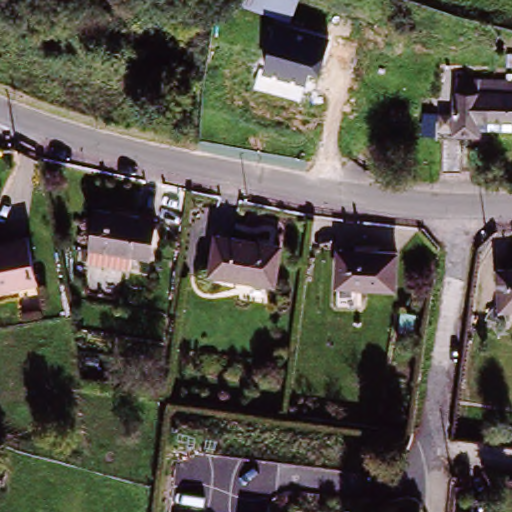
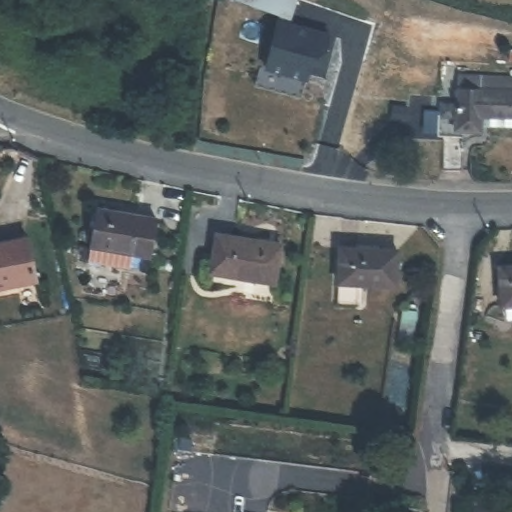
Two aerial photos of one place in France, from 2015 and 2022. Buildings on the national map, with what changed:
unchanged [(231,2),(232,0),(298,0),(290,20),(231,2)]
unchanged [(265,70),(279,20),(332,36),(323,73),(311,69),(308,82),(265,70)]
unchanged [(461,103),(462,75),(498,75),(498,73),(512,73),(512,124),(489,124),(489,149),(462,150),(462,145),(458,145),(459,103),(461,103)]
unchanged [(86,268),(91,248),(98,209),(156,220),(149,259),(106,250),(102,271),(86,268)]
unchanged [(279,248),(273,288),(208,277),(215,238),(279,248)]
unchanged [(36,283),(0,291),(0,249),(27,243),(36,283)]
unchanged [(395,253),(393,290),(336,288),(338,249),(395,253)]
unchanged [(512,265),(512,309),(501,310),(496,267),(512,265)]
unchanged [(471,502),(490,504),(489,512),(470,512),(471,502)]

